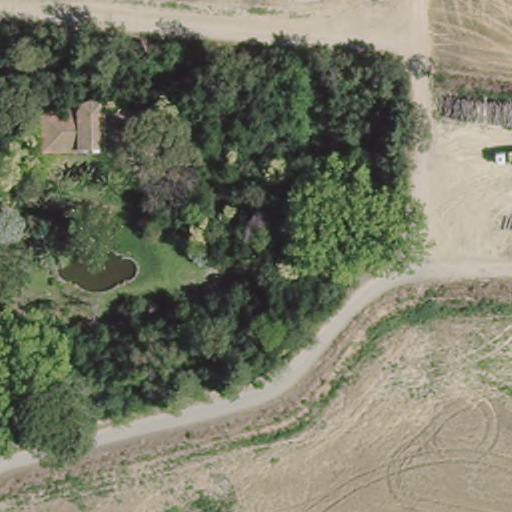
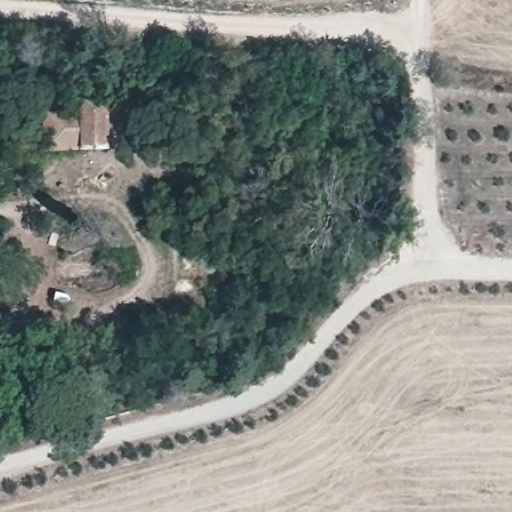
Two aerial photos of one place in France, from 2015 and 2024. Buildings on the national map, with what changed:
unchanged [(41,113),(64,112),(82,99),(100,98),(111,104),(115,115),(139,116),(136,149),(41,146),(41,113)]

